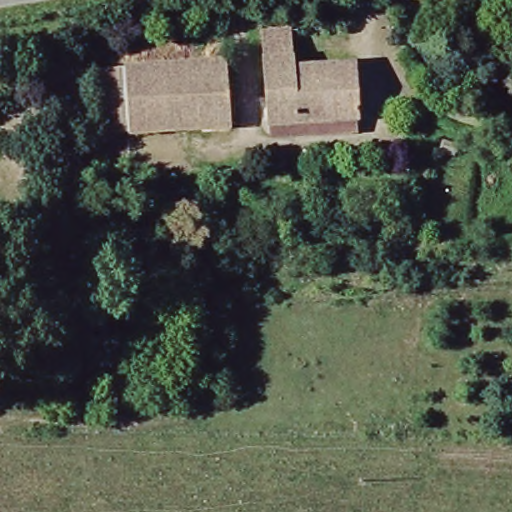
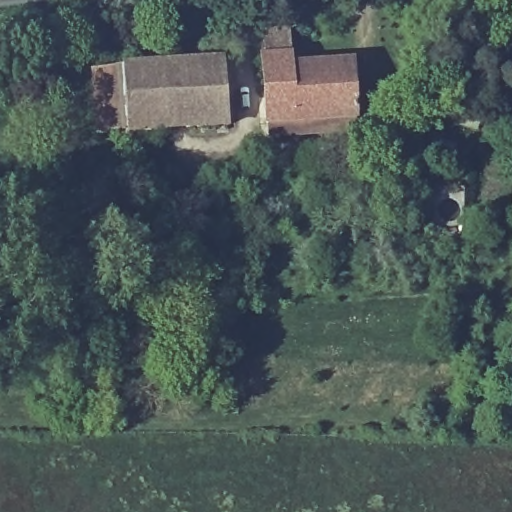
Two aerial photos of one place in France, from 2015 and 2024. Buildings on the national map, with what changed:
unchanged [(296,70),(356,69),(358,121),(268,122),(265,31),(293,30),(296,70)]
unchanged [(210,62),(212,127),(114,130),(111,65),(210,62)]

